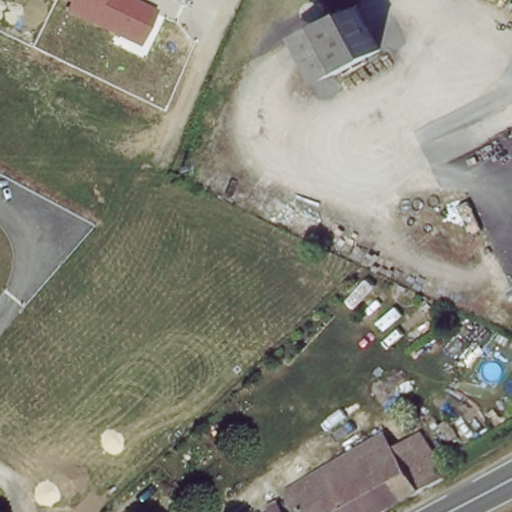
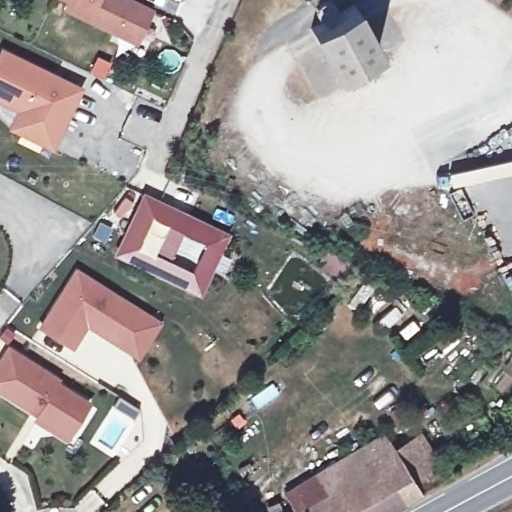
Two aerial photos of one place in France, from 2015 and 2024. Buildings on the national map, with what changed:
unchanged [(140,45),(62,9),(64,0),(146,0),(159,5),(140,45)]
unchanged [(379,54),(332,76),(312,28),(361,8),(379,54)]
new [(88,87),(65,134),(28,116),(31,109),(0,94),(0,70),(9,50),(88,87)]
new [(201,294),(115,254),(143,192),(229,234),(201,294)]
new [(75,266),(161,320),(136,359),(88,328),(73,349),(38,328),(75,266)]
new [(40,415),(44,409),(38,405),(36,407),(0,384),(0,364),(13,344),(61,376),(59,379),(92,400),(77,424),(70,434),(56,425),(40,415)]
unchanged [(422,497),(395,452),(424,436),(448,477),(450,481),(422,497)]
unchanged [(422,497),(395,512),(303,512),(364,476),(353,456),(377,442),(386,437),(395,452),(422,497)]
unchanged [(364,476),(303,512),(294,512),(286,490),(353,456),(364,476)]

